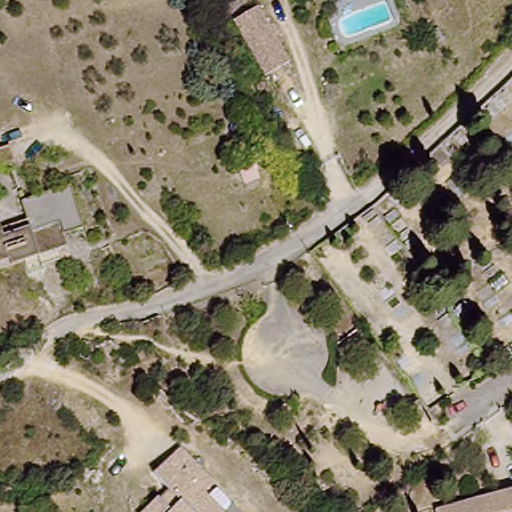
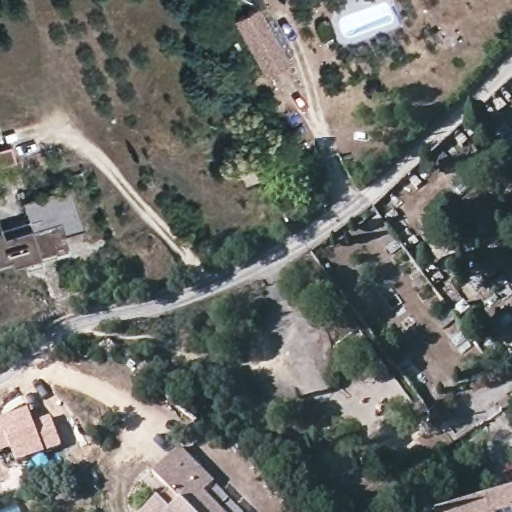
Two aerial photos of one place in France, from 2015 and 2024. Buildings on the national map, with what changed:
unchanged [(291,66),(268,80),(234,24),(258,10),(291,66)]
unchanged [(16,161),(0,166),(0,150),(11,147),(16,161)]
unchanged [(73,189),(85,232),(66,237),(62,225),(33,233),(23,202),(73,189)]
unchanged [(0,234),(0,224),(4,232),(0,234)]
unchanged [(69,249),(41,257),(42,261),(15,270),(13,265),(0,269),(0,234),(4,232),(7,241),(33,233),(62,225),(66,237),(69,249)]
new [(34,427),(52,420),(63,446),(19,462),(13,448),(0,453),(0,421),(28,410),(34,427)]
unchanged [(199,496),(214,512),(143,512),(163,492),(151,477),(177,452),(209,486),(199,496)]
unchanged [(479,512),(512,504),(512,512),(479,512)]

